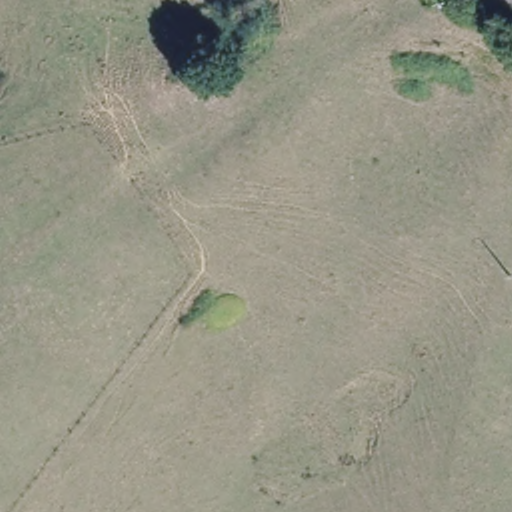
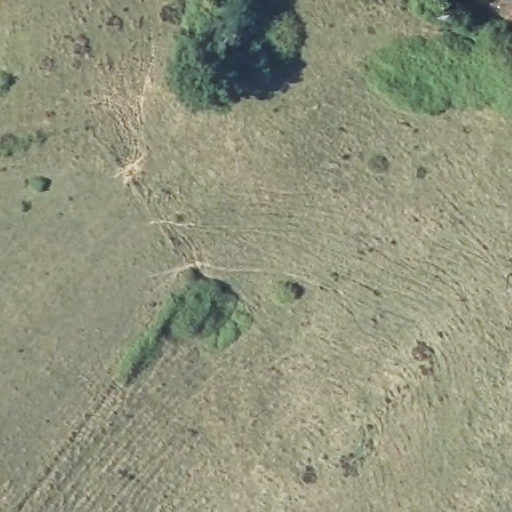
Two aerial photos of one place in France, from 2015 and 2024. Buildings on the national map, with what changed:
[]

